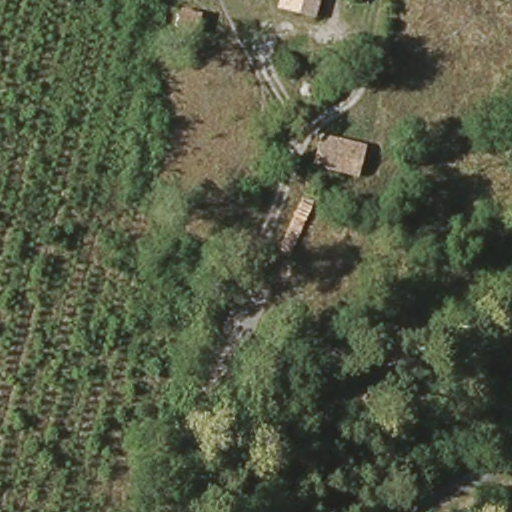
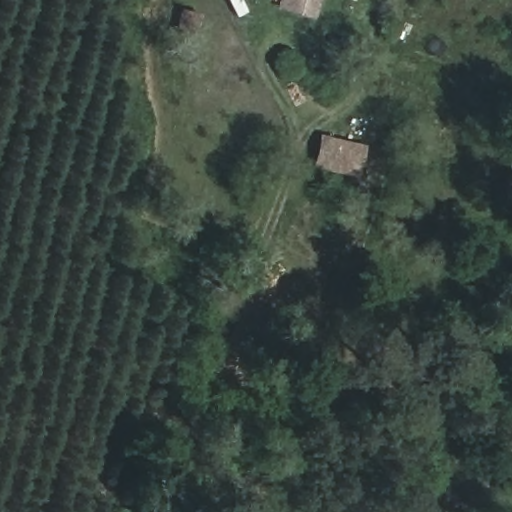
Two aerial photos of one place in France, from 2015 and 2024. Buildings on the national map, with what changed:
unchanged [(281,0),(320,0),(315,18),(279,8),(281,0)]
unchanged [(174,29),(179,7),(203,15),(198,35),(174,29)]
unchanged [(366,146),(359,178),(317,168),(321,136),(366,146)]

